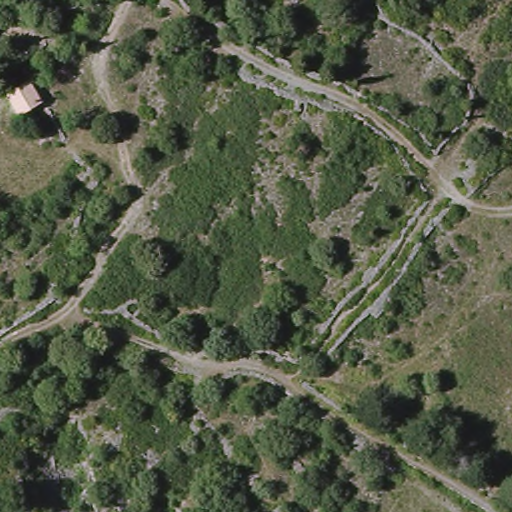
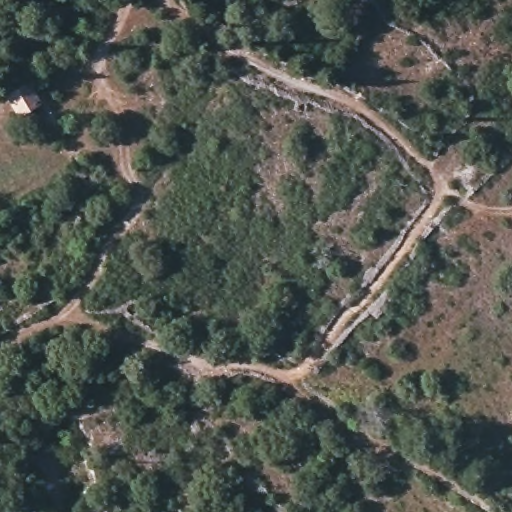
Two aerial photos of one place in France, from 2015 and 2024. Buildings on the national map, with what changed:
unchanged [(30,115),(19,101),(35,89),(46,102),(30,115)]

